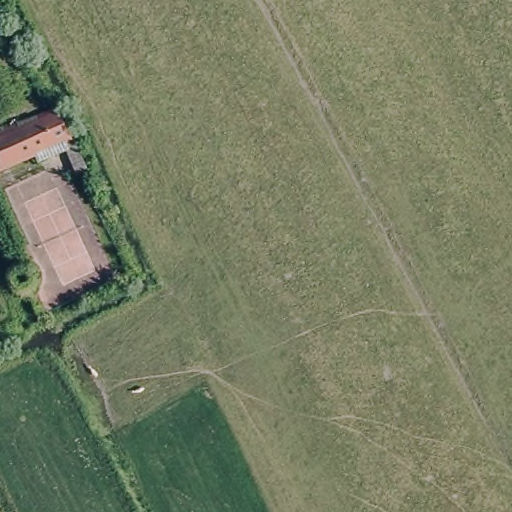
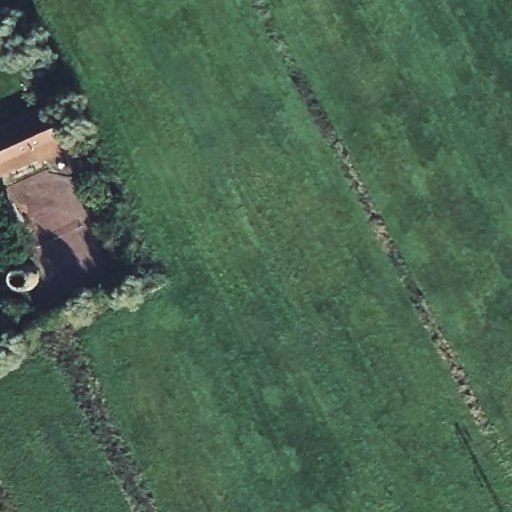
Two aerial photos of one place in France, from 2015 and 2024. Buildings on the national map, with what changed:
unchanged [(54,106),(85,172),(75,177),(61,150),(38,161),(34,153),(0,169),(0,132),(54,106)]

